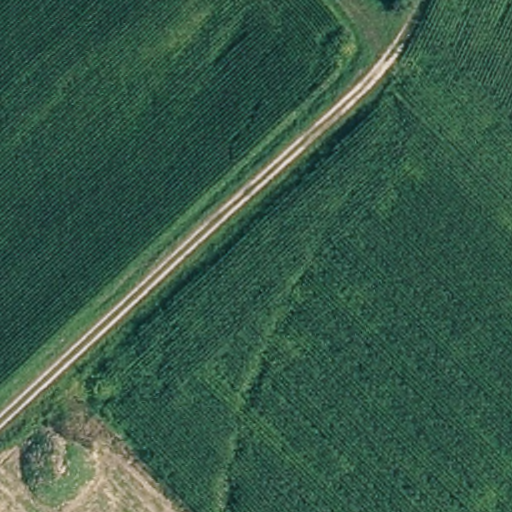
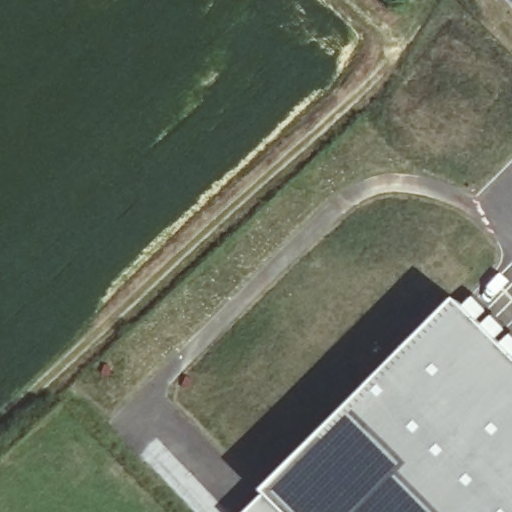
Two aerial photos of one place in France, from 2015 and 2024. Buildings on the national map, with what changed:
new [(460,300),(493,330),(494,329),(502,341),(508,335),(512,338),(512,512),(285,512),(265,492),(460,300)]
new [(265,492),(285,512),(246,512),(265,492)]

